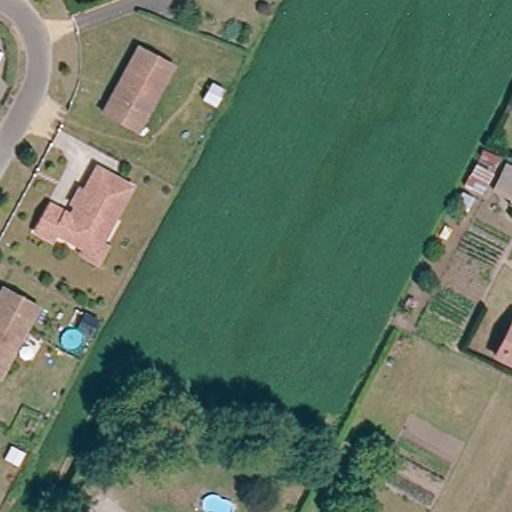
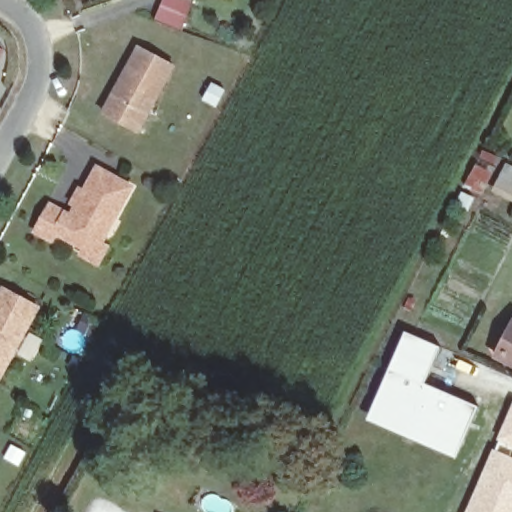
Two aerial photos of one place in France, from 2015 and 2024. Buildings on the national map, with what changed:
new [(169,0),(199,0),(190,23),(163,14),(169,0)]
unchanged [(142,139),(106,119),(142,52),(179,72),(142,139)]
unchanged [(488,188),(487,195),(466,187),(484,151),(512,164),(512,199),(488,188)]
unchanged [(101,266),(84,257),(88,251),(59,234),(55,242),(39,233),(54,206),(75,218),(102,170),(137,188),(102,247),(109,250),(101,266)]
unchanged [(0,374),(0,305),(11,286),(44,305),(6,377),(0,374)]
new [(404,330),(441,346),(426,382),(477,406),(455,458),(365,419),(404,330)]
unchanged [(507,359),(512,347),(512,362),(507,359)]
new [(512,403),(512,447),(496,440),(512,403)]
new [(512,457),(512,512),(465,512),(492,448),(512,457)]

